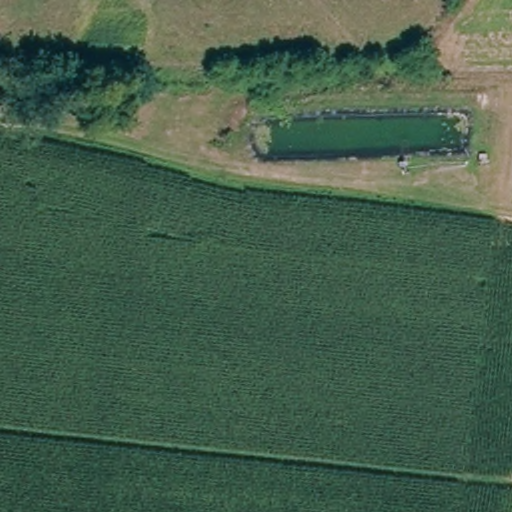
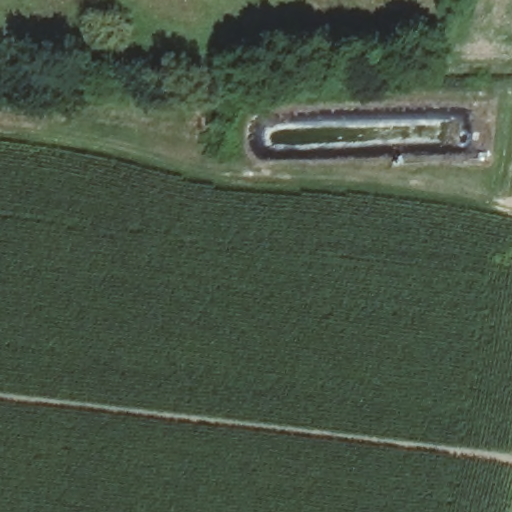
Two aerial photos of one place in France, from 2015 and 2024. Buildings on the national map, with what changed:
[]

